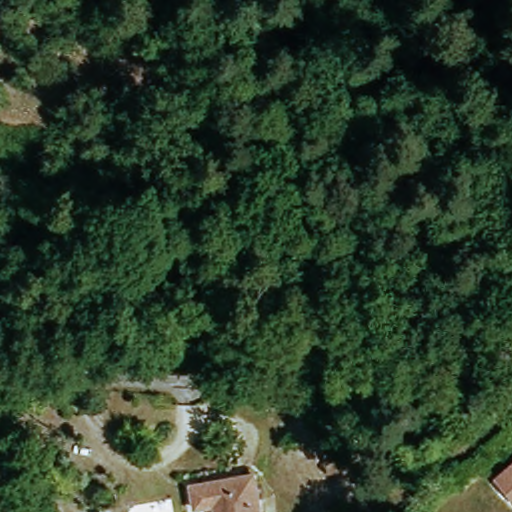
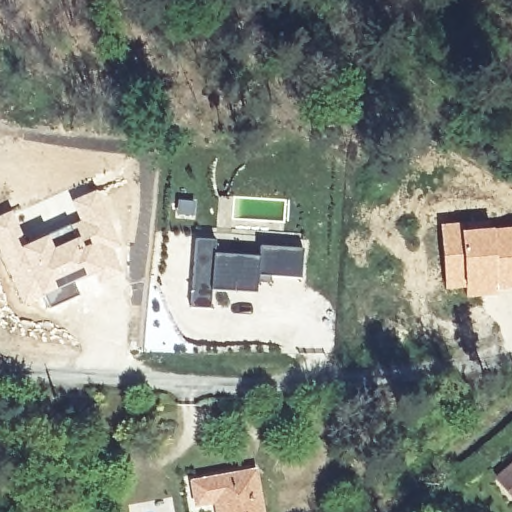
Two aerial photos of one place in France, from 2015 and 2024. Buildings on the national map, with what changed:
new [(13,210),(25,238),(19,241),(22,245),(78,220),(70,201),(98,189),(123,247),(115,250),(121,269),(73,282),(78,294),(44,308),(40,299),(24,306),(0,254),(0,215),(13,210)]
new [(459,224),(460,230),(464,289),(445,291),(440,225),(459,224)]
new [(512,290),(465,297),(464,289),(460,230),(512,227),(512,290)]
new [(233,291),(210,290),(209,307),(189,306),(193,237),(213,239),(213,252),(258,256),(258,245),(301,247),(299,277),(269,275),(269,282),(256,281),(256,283),(256,292),(233,291)]
new [(512,495),(498,480),(512,466),(512,495)]
unchanged [(264,512),(220,512),(216,512),(199,512),(194,482),(257,472),(264,512)]

